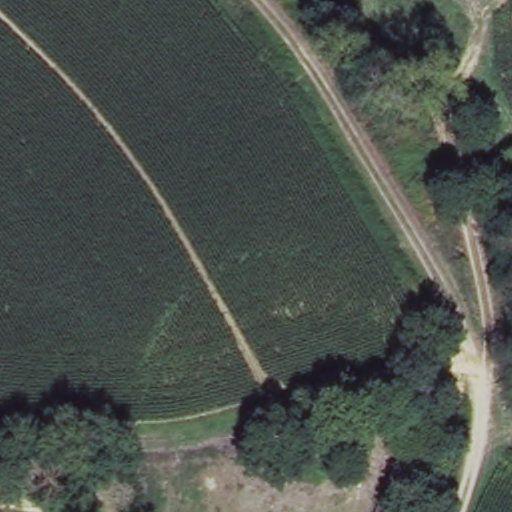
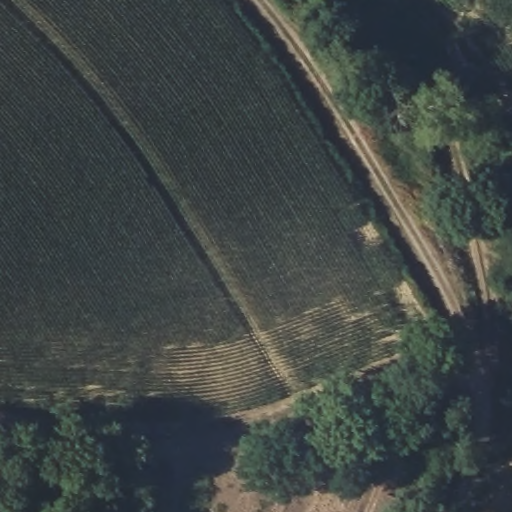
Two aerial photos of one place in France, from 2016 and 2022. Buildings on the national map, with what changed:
unchanged [(415,512),(381,512),(389,495),(418,505),(415,512)]

